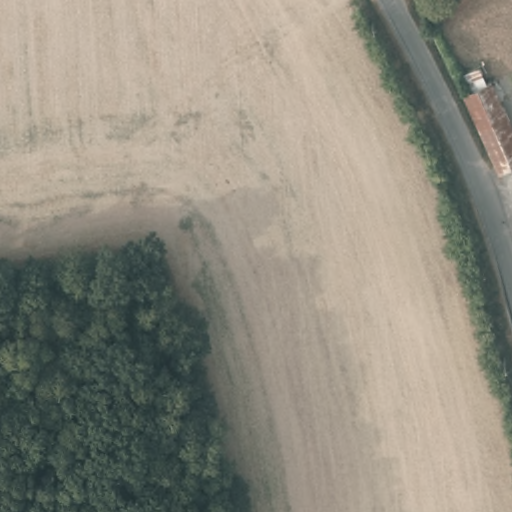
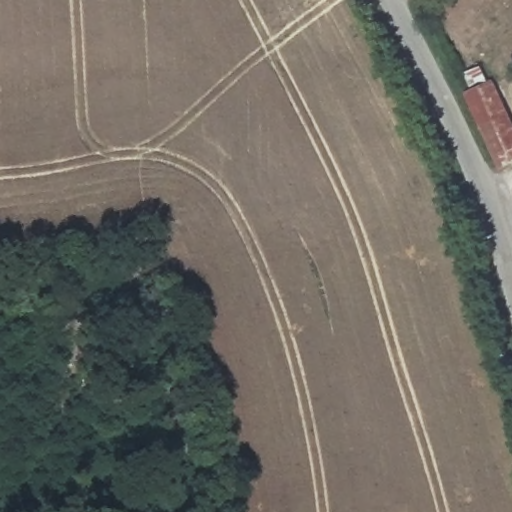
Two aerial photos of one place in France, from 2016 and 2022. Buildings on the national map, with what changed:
unchanged [(465,94),(489,80),(512,128),(512,162),(501,168),(465,94)]

